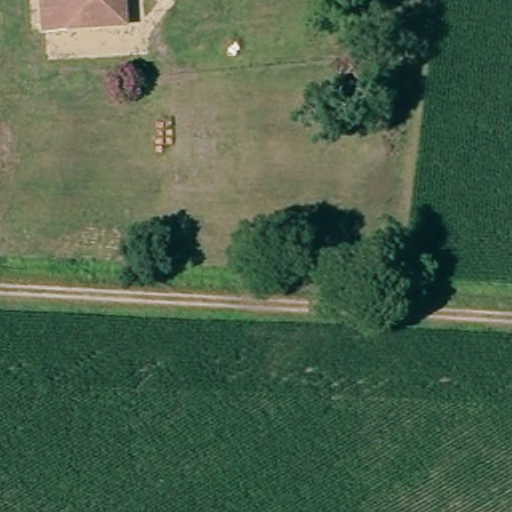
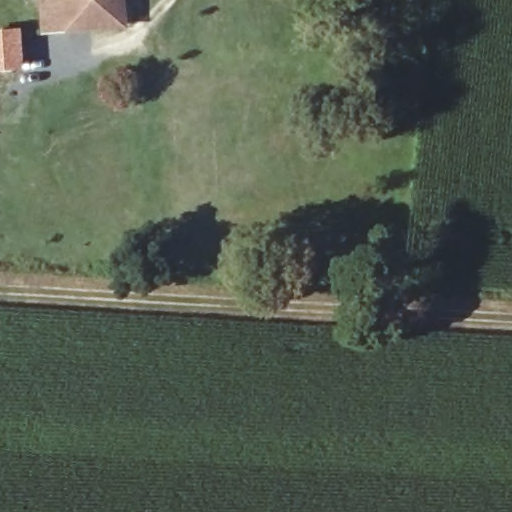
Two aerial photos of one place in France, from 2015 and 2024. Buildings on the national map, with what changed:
unchanged [(42,0),(121,0),(123,23),(44,32),(42,0)]
new [(22,27),(23,68),(0,70),(0,29),(22,27)]
demolished [(28,65),(28,81),(0,79),(1,64),(28,65)]

